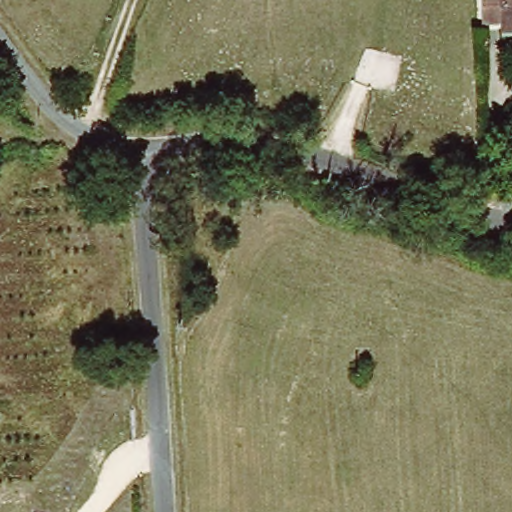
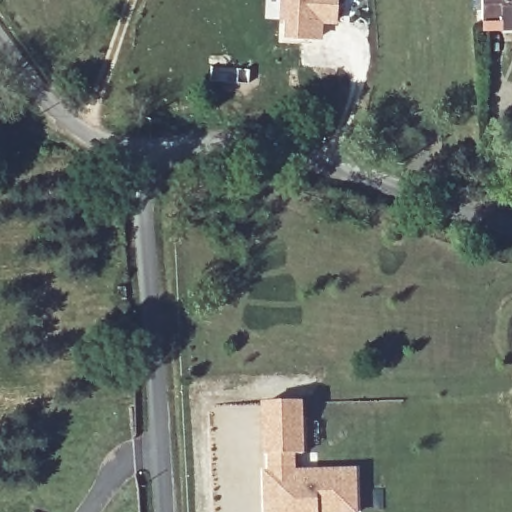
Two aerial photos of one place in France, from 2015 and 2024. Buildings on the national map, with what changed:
new [(316,21),(316,38),(282,36),(282,20),(277,20),(278,0),(332,0),(331,22),(316,21)]
unchanged [(512,0),(512,24),(482,25),(482,0),(512,0)]
new [(261,474),(266,473),(266,455),(261,455),(260,404),(298,402),(299,455),(290,455),(290,473),(351,471),(352,512),(262,512),(261,474)]

